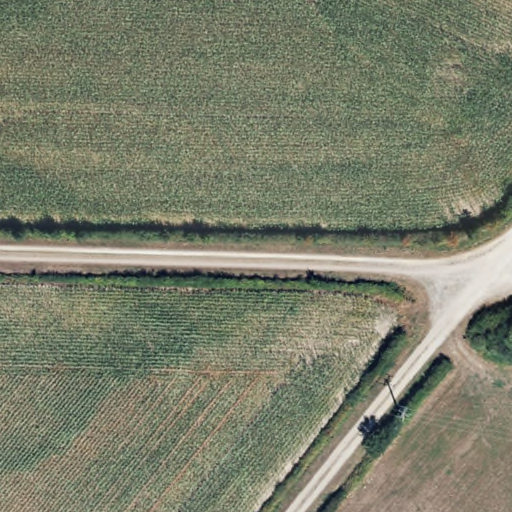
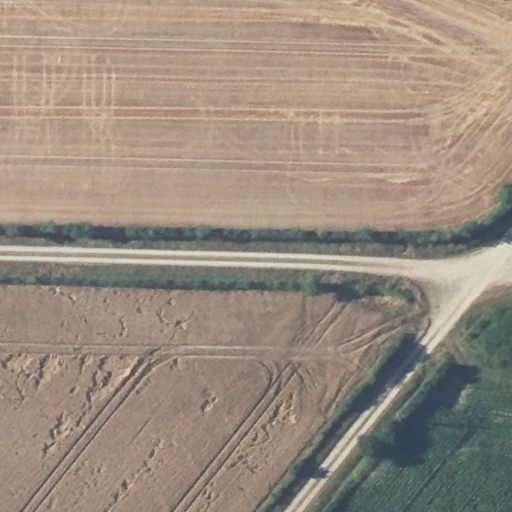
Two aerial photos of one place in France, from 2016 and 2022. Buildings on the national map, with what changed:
[]

